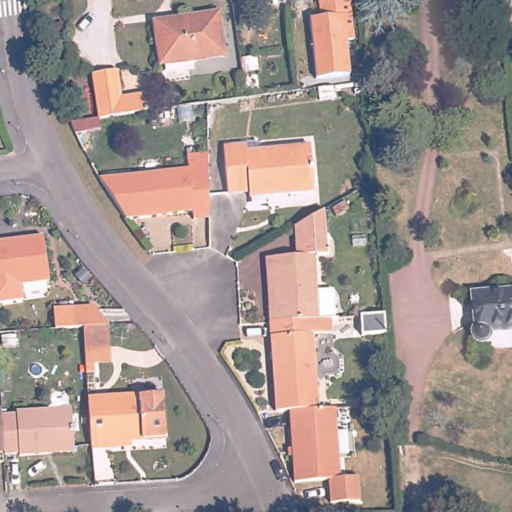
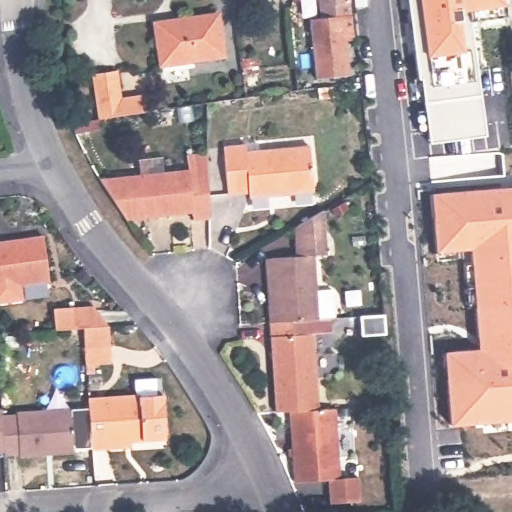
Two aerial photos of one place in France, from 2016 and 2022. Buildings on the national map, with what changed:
unchanged [(319,6),(318,0),(351,0),(351,2),(319,6)]
new [(429,142),(419,79),(417,80),(406,0),(505,0),(506,14),(470,20),(485,132),(429,142)]
unchanged [(228,9),(233,51),(170,59),(164,19),(228,9)]
unchanged [(352,15),(355,39),(345,40),(348,74),(316,77),(310,19),(352,15)]
unchanged [(154,107),(137,109),(101,114),(97,69),(121,66),(125,95),(135,94),(152,92),(154,107)]
unchanged [(244,140),(244,147),(310,141),(313,186),(248,191),(248,187),(227,189),(223,142),(244,140)]
unchanged [(211,164),(213,214),(197,215),(197,208),(129,216),(104,174),(192,166),(191,151),(211,149),(211,164)]
new [(444,350),(478,348),(471,250),(436,252),(432,192),(512,186),(512,421),(450,426),(444,350)]
unchanged [(277,253),(300,252),(299,221),(329,204),(332,249),(319,250),(322,314),(273,317),(272,301),(270,253),(277,253)]
unchanged [(43,231),(49,276),(21,280),(22,295),(0,298),(0,237),(43,231)]
demolished [(512,324),(509,324),(493,326),(491,332),(487,335),(483,337),(479,337),(475,333),(474,331),(474,325),(475,319),(473,287),(512,284),(512,324)]
unchanged [(85,346),(84,328),(73,328),(55,330),(54,310),(94,307),(108,326),(111,345),(85,346)]
unchanged [(322,314),(333,313),(333,328),(317,328),(322,403),(294,405),(279,406),(273,317),(322,314)]
unchanged [(107,443),(91,444),(88,395),(163,390),(165,433),(129,436),(130,441),(107,443)]
unchanged [(322,403),(339,402),(344,474),(298,477),(294,405),(322,403)]
unchanged [(45,455),(19,457),(19,454),(4,455),(3,451),(1,415),(16,415),(16,413),(71,409),(73,447),(73,453),(45,455)]
unchanged [(1,410),(1,415),(3,451),(0,451),(0,411),(1,410)]
unchanged [(350,493),(351,512),(333,512),(333,494),(350,493)]

